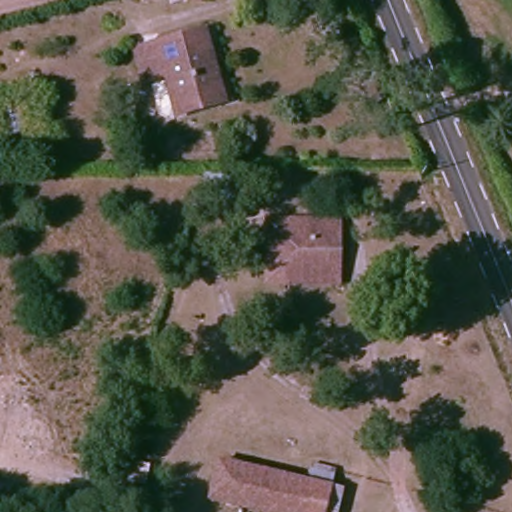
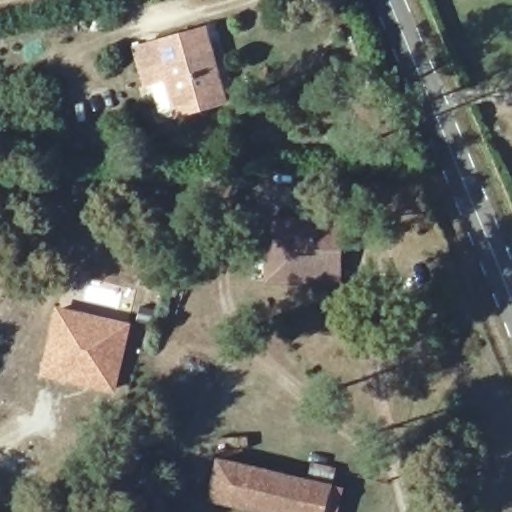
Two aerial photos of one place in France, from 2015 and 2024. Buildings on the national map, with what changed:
unchanged [(226,100),(177,113),(156,46),(208,32),(226,100)]
unchanged [(325,276),(283,277),(283,272),(275,272),(268,265),(267,238),(265,238),(266,217),(339,214),(339,234),(338,276),(325,276)]
new [(59,311),(124,325),(111,388),(46,375),(59,311)]
unchanged [(248,512),(230,507),(213,503),(226,457),(241,462),(336,490),(331,512),(248,512)]

